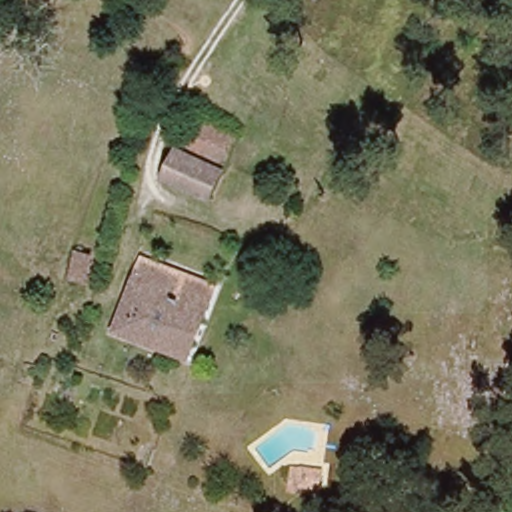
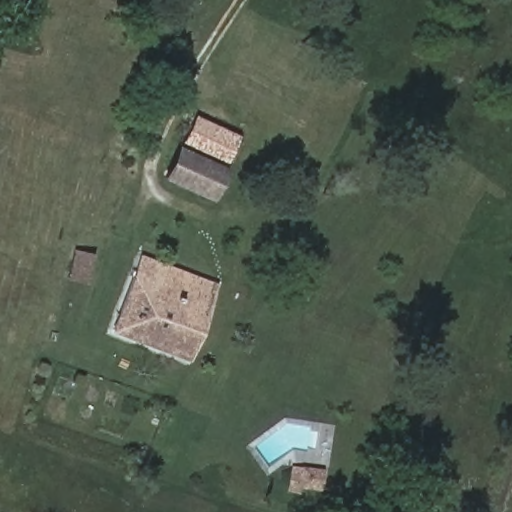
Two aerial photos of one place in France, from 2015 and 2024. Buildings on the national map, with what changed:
unchanged [(226,170),(214,202),(163,179),(179,145),(193,117),(239,136),(226,170)]
unchanged [(70,277),(74,250),(94,252),(86,282),(70,277)]
unchanged [(142,262),(219,288),(196,357),(117,331),(142,262)]
unchanged [(312,465),(307,485),(270,475),(276,454),(312,465)]

